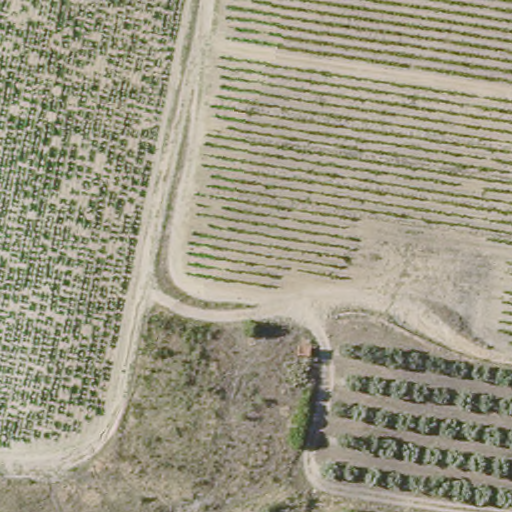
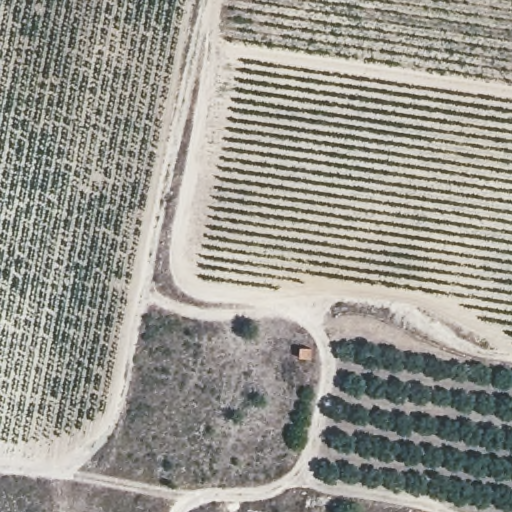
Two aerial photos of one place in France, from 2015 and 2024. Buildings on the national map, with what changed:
unchanged [(312,359),(312,373),(300,373),(301,359),(312,359)]

